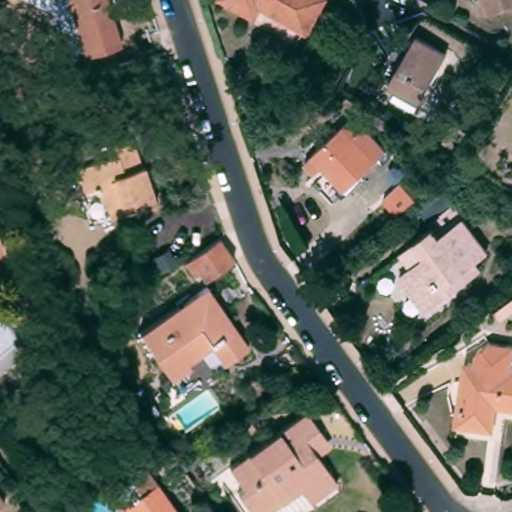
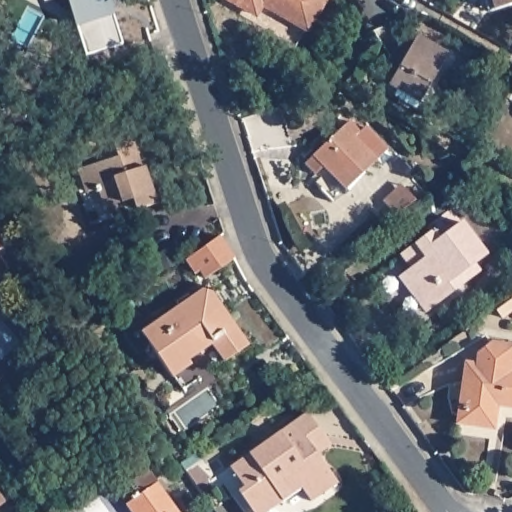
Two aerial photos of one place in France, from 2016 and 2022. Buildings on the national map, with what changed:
unchanged [(89,56),(72,0),(114,0),(128,45),(89,56)]
unchanged [(265,6),(260,15),(232,0),(329,0),(312,31),(265,6)]
unchanged [(490,0),(512,0),(512,5),(493,11),(490,0)]
unchanged [(445,56),(419,101),(390,84),(416,39),(445,56)]
unchanged [(363,135),(370,128),(390,149),(351,189),(318,155),(352,123),(363,135)]
unchanged [(144,159),(140,160),(142,168),(150,165),(162,204),(140,211),(136,199),(111,209),(104,188),(93,192),(86,168),(121,156),(119,143),(137,137),(144,159)]
unchanged [(458,292),(429,313),(402,279),(429,257),(418,244),(438,230),(445,238),(466,222),(492,254),(479,265),(484,272),(458,292)]
unchanged [(227,232),(239,257),(209,277),(204,270),(199,273),(189,259),(227,232)]
unchanged [(3,248),(0,249),(0,240),(3,248)]
unchanged [(189,391),(179,377),(146,331),(210,286),(253,345),(229,362),(217,345),(193,361),(196,365),(206,379),(189,391)]
unchanged [(477,358),(492,347),(512,350),(512,410),(495,408),(491,431),(458,427),(467,370),(475,371),(477,358)]
unchanged [(315,502),(305,489),(272,512),(257,512),(242,490),(248,485),(234,465),(311,412),(330,438),(336,447),(323,456),(342,483),(315,502)]
unchanged [(181,512),(135,512),(130,505),(146,494),(136,480),(152,469),(181,512)]
unchanged [(7,500),(0,505),(0,490),(7,500)]

